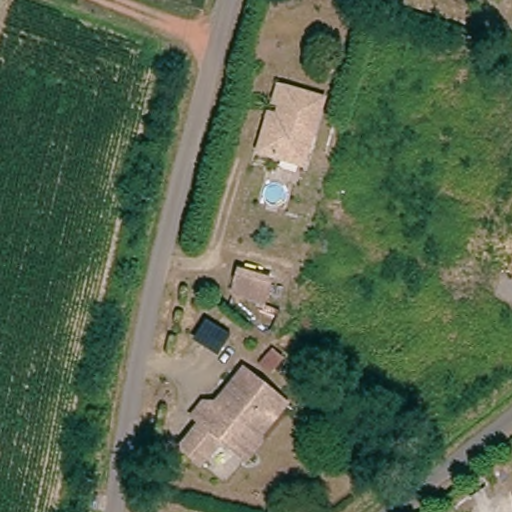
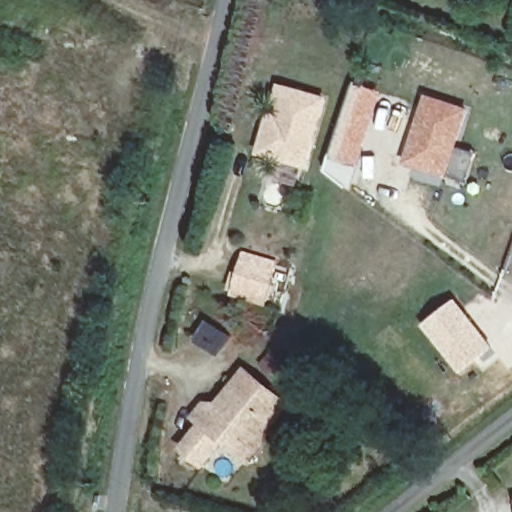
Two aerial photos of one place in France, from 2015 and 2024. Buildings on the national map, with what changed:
new [(355,165),(341,160),(342,118),(353,86),(378,94),(355,165)]
unchanged [(322,101),(306,168),(260,156),(267,131),(277,132),(287,91),(322,101)]
new [(467,111),(445,179),(402,165),(425,95),(467,111)]
unchanged [(232,261),(263,269),(261,288),(229,281),(232,261)]
new [(454,297),(493,347),(459,373),(420,323),(454,297)]
unchanged [(275,364),(262,354),(270,341),(285,352),(275,364)]
unchanged [(195,419),(187,413),(194,402),(211,399),(222,384),(242,358),(284,390),(268,410),(273,415),(241,456),(231,448),(217,437),(197,464),(174,446),(195,419)]

